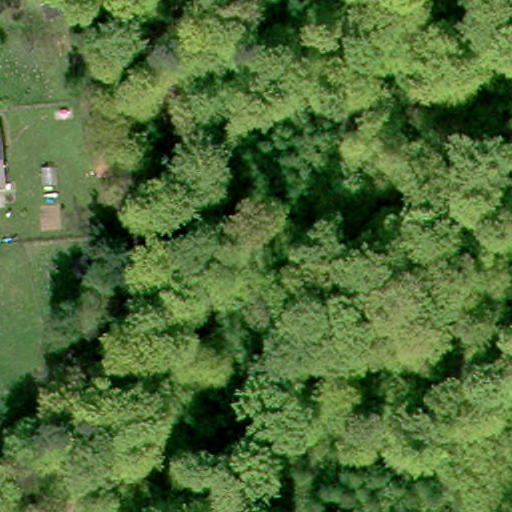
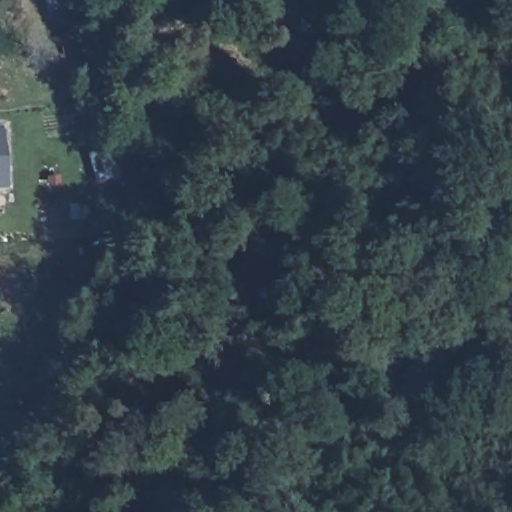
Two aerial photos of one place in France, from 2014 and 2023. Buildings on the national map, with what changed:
unchanged [(69,0),(69,1),(56,4),(55,0),(69,0)]
unchanged [(3,127),(15,182),(0,185),(0,128),(3,127)]
unchanged [(103,149),(120,146),(127,166),(110,170),(103,149)]

